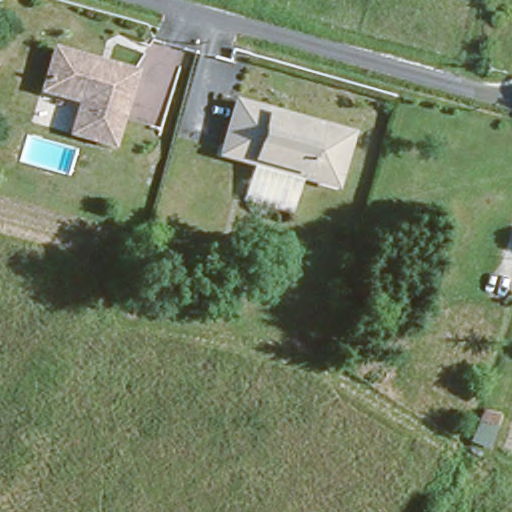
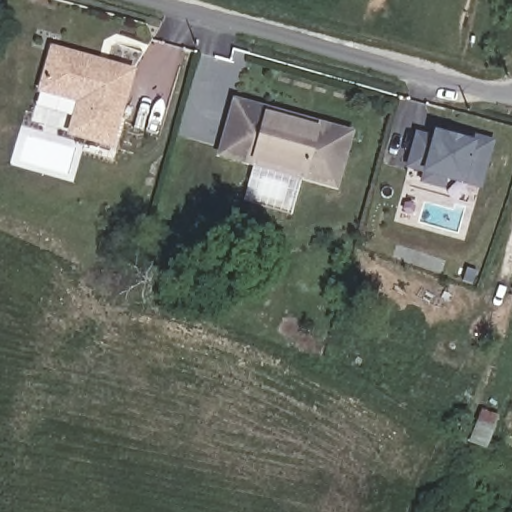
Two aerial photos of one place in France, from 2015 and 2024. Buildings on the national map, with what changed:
unchanged [(134,65),(113,134),(72,122),(81,92),(44,83),(56,41),(134,65)]
unchanged [(351,126),(337,181),(220,150),(236,94),(351,126)]
new [(482,190),(464,184),(448,180),(447,188),(421,181),(422,173),(407,168),(418,129),(433,134),(435,129),(447,132),(447,126),(497,139),(482,190)]
unchanged [(296,208),(244,196),(253,163),(302,176),(296,208)]

